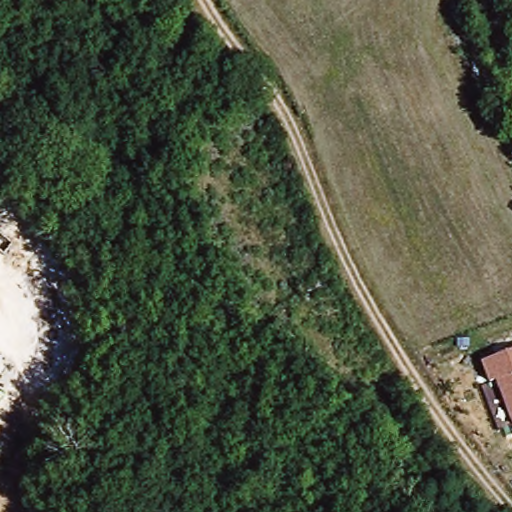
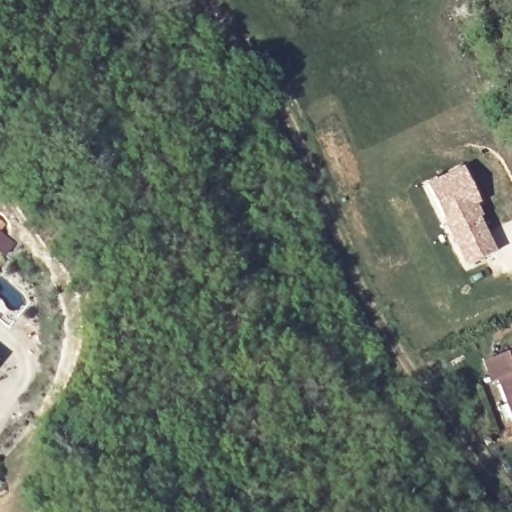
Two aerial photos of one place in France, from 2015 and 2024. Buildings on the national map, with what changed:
new [(462,163),(482,202),(477,205),(497,252),(465,267),(425,183),(462,163)]
unchanged [(512,351),(512,425),(497,382),(489,385),(481,364),(512,351)]
unchanged [(0,359),(0,356),(2,358),(0,359)]

